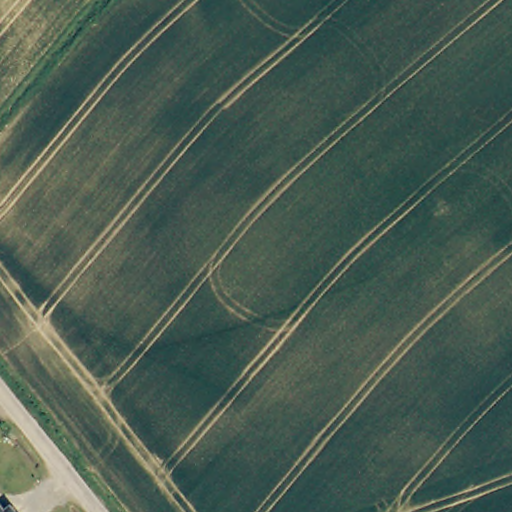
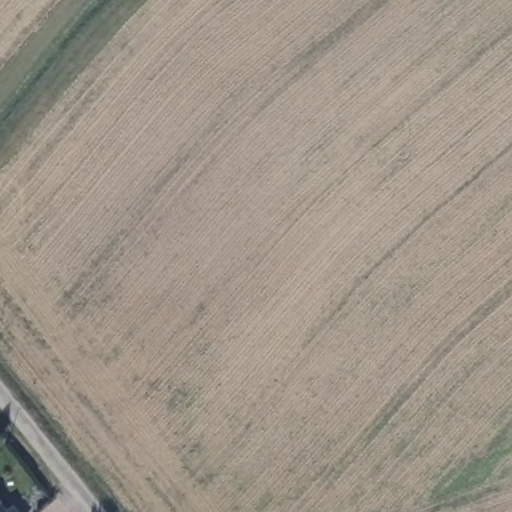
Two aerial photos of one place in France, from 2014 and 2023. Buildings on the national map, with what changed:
unchanged [(12,506),(17,512),(0,512),(0,502),(6,510),(12,506)]

